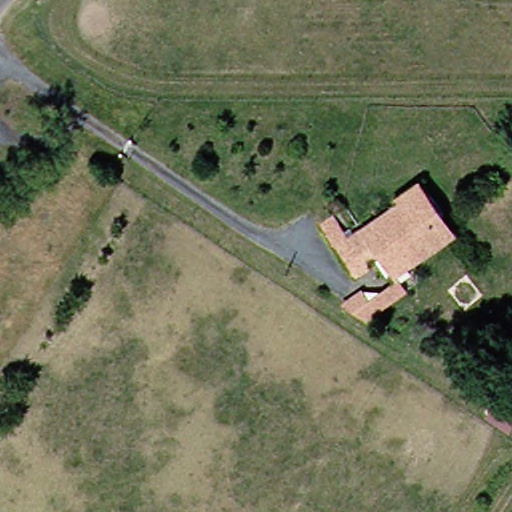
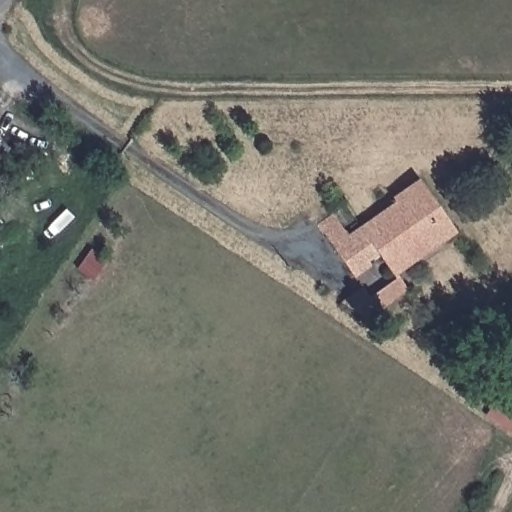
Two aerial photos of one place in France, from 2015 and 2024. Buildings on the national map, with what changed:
unchanged [(368,254),(357,261),(359,265),(343,275),(327,250),(312,226),(329,215),(345,239),(392,210),(389,205),(417,187),(437,217),(449,235),(444,239),(397,267),(383,276),(368,254)]
unchanged [(355,298),(383,280),(393,292),(353,317),(329,300),(349,290),(355,298)]
unchanged [(500,399),(512,406),(512,427),(490,413),(496,405),(500,399)]

